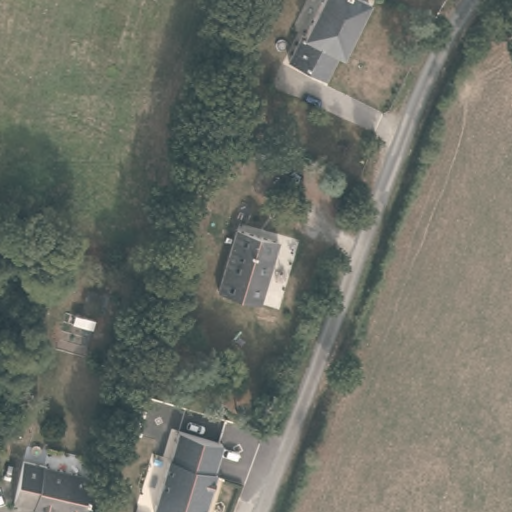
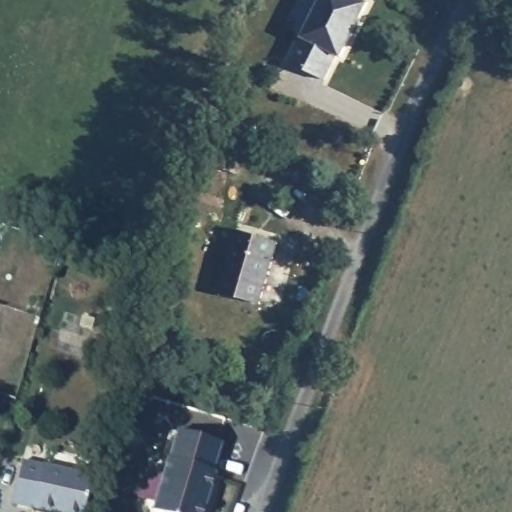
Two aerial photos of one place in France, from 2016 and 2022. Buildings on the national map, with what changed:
unchanged [(307,39),(325,0),(366,0),(369,1),(346,54),(342,53),(330,80),(290,63),(302,37),(307,39)]
unchanged [(223,136),(249,144),(241,173),(214,164),(223,136)]
unchanged [(239,228),(280,240),(261,302),(221,291),(239,228)]
unchanged [(126,345),(123,357),(109,354),(112,340),(126,345)]
unchanged [(175,431),(222,444),(203,512),(154,512),(175,431)]
unchanged [(24,458),(93,473),(84,512),(63,512),(13,499),(24,458)]

